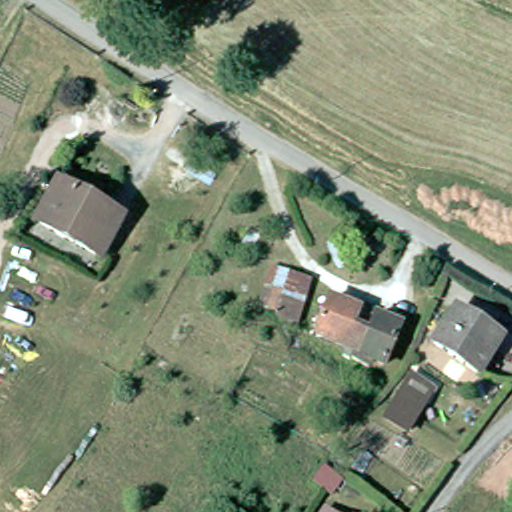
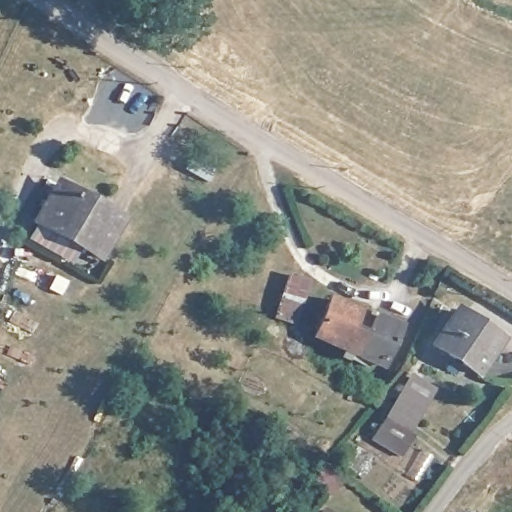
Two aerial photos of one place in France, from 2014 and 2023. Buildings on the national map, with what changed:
unchanged [(55,180),(121,213),(103,248),(37,215),(55,180)]
unchanged [(301,267),(285,308),(267,300),(267,297),(253,291),(262,269),(277,275),(283,259),(301,267)]
unchanged [(382,358),(314,331),(327,295),(357,307),(367,311),(396,323),(382,358)]
unchanged [(455,308),(500,339),(476,372),(432,341),(455,308)]
unchanged [(331,512),(333,509),(337,512),(331,512)]

